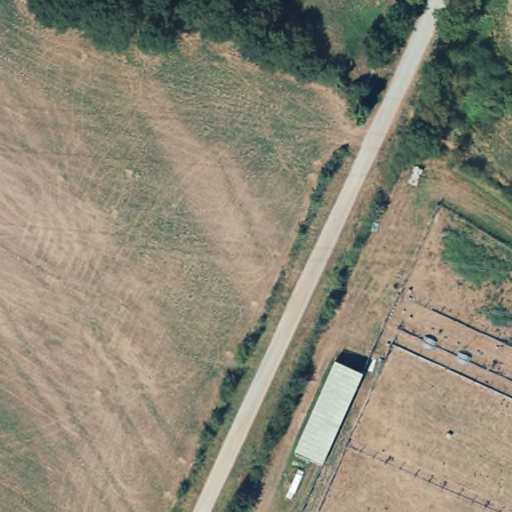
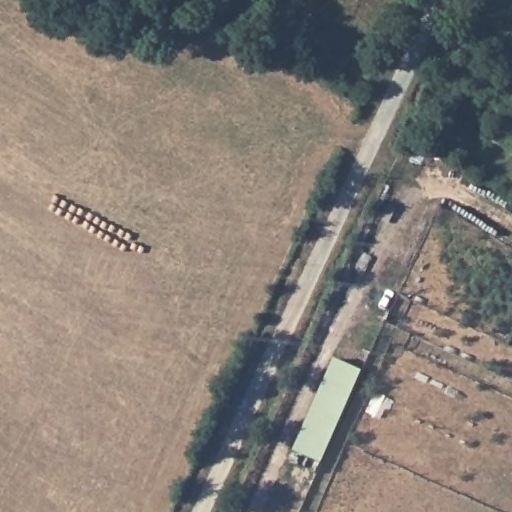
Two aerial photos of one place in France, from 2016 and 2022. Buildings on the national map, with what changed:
unchanged [(363,369),(324,462),(295,450),(335,359),(363,369)]

